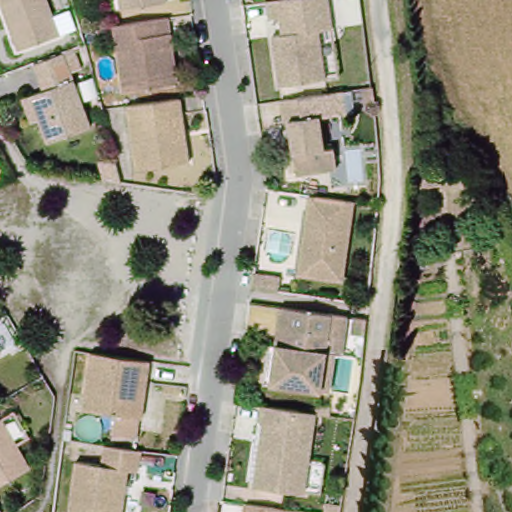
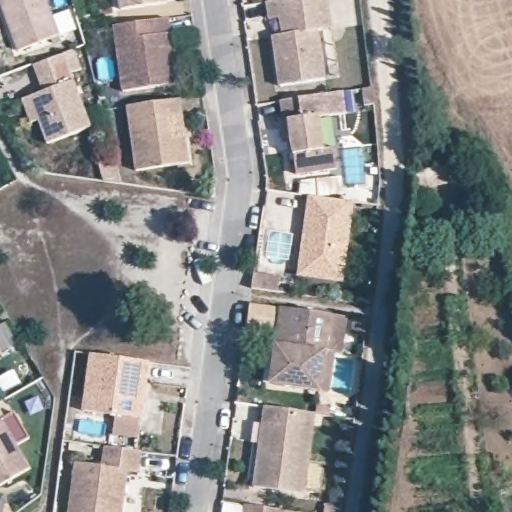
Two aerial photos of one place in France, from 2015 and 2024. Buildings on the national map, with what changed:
unchanged [(56,34),(17,48),(0,1),(0,0),(43,0),(56,34)]
unchanged [(164,1),(120,8),(118,0),(164,0),(164,1)]
unchanged [(335,26),(321,29),(328,77),(283,84),(276,35),(286,32),(284,15),(273,17),(271,0),(331,0),(335,26)]
unchanged [(121,90),(112,25),(166,16),(169,32),(172,55),(176,82),(121,90)]
unchanged [(61,52),(89,126),(45,142),(27,95),(54,85),(51,75),(38,80),(32,63),(61,52)]
unchanged [(335,172),(295,176),(293,159),(291,141),(281,142),(279,126),(284,125),(280,104),(316,99),(347,95),(349,111),(333,113),(318,115),(324,155),(332,154),(335,172)]
unchanged [(135,170),(126,105),(179,97),(181,114),(184,138),(188,164),(135,170)]
unchanged [(95,163),(113,159),(117,179),(99,182),(95,163)]
unchanged [(301,245),(308,194),(351,200),(341,280),(306,276),(297,275),(301,245)]
unchanged [(267,347),(273,348),(279,311),(329,318),(318,394),(274,388),(261,386),(267,347)]
unchanged [(82,409),(90,352),(148,360),(146,376),(144,393),(140,417),(82,409)]
unchanged [(298,496),(248,489),(259,410),(309,417),(298,496)]
unchanged [(13,415),(28,441),(15,449),(28,473),(0,489),(0,423),(13,415)]
unchanged [(121,469),(115,512),(62,512),(70,461),(96,465),(99,445),(134,450),(131,470),(121,469)]
unchanged [(243,512),(245,503),(281,508),(280,512),(243,512)]

